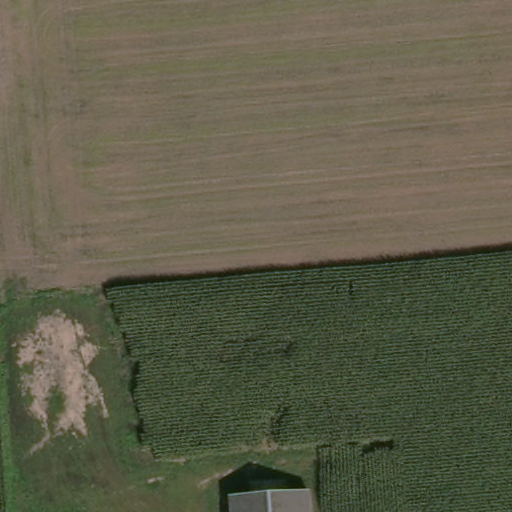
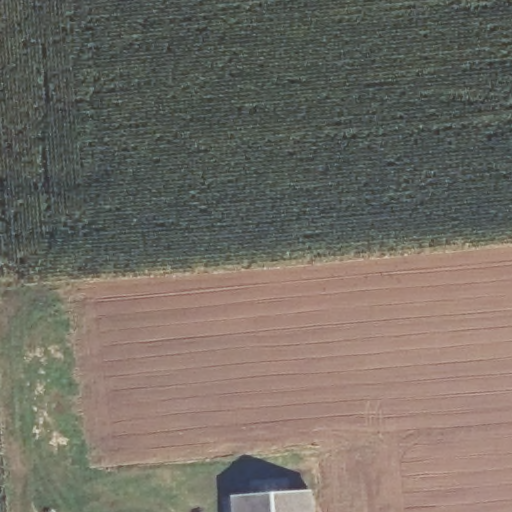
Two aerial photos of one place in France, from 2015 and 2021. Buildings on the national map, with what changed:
unchanged [(231,497),(307,488),(309,512),(232,512),(231,497)]

